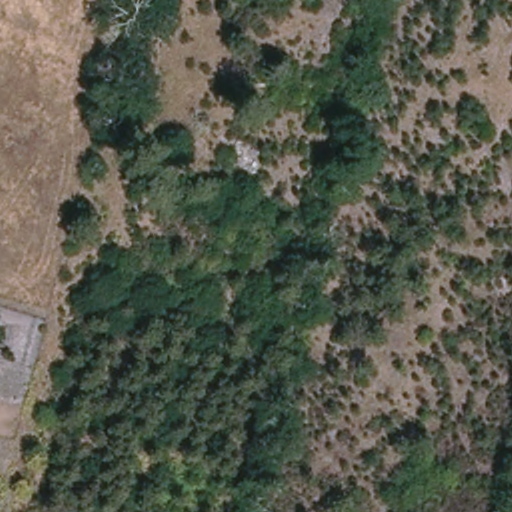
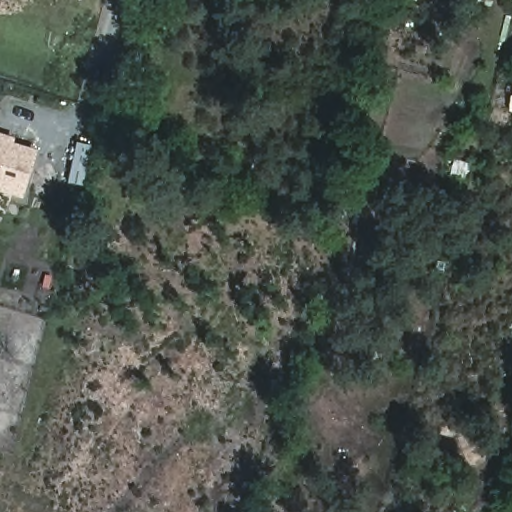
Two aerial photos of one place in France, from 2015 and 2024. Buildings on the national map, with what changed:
new [(0,206),(0,144),(18,150),(17,154),(40,162),(27,206),(5,199),(2,208),(0,206)]

